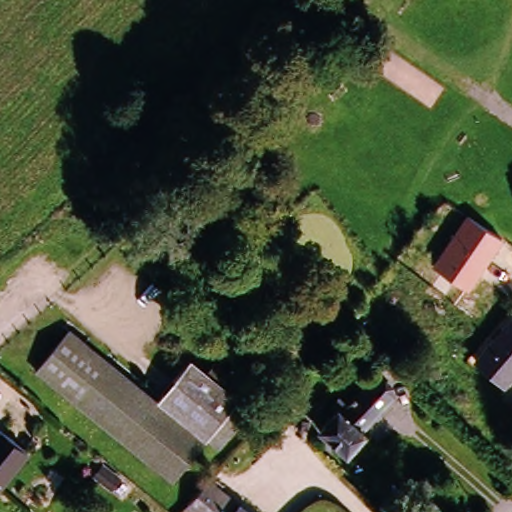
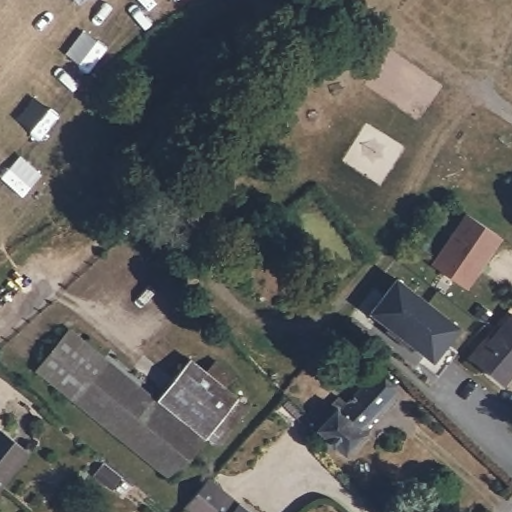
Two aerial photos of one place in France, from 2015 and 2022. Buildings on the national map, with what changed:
unchanged [(467,288),(432,263),(466,214),(502,238),(467,288)]
new [(432,362),(412,347),(409,351),(385,332),(390,327),(371,312),(399,279),(460,328),(432,362)]
unchanged [(512,314),(512,374),(504,384),(474,359),(512,314)]
unchanged [(69,329),(155,400),(189,358),(240,399),(174,483),(59,387),(36,369),(59,341),(69,329)]
demolished [(362,340),(379,357),(369,368),(361,361),(350,373),(340,364),(362,340)]
unchanged [(336,411),(331,406),(338,398),(346,405),(372,378),(393,397),(360,432),(362,434),(345,454),(319,429),(336,411)]
unchanged [(0,485),(0,431),(26,453),(0,485)]
unchanged [(184,506),(207,479),(246,512),(192,512),(184,506)]
unchanged [(388,481),(402,496),(385,512),(380,512),(369,500),(388,481)]

